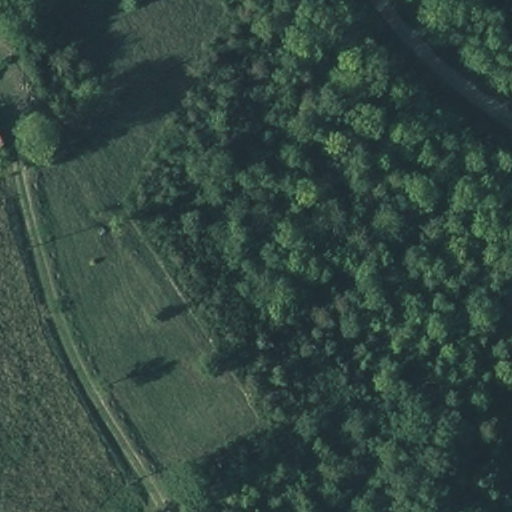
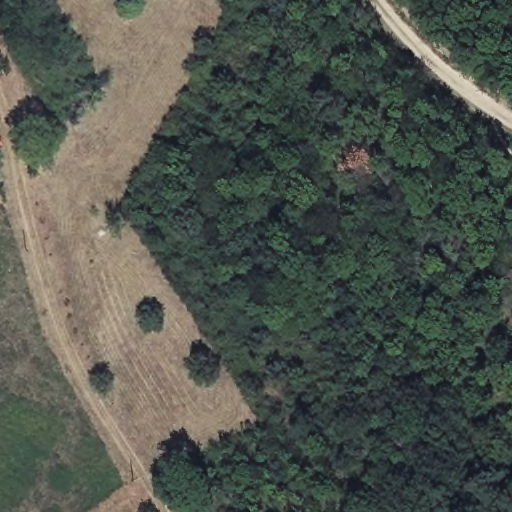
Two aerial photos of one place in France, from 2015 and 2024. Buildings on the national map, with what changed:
unchanged [(0,160),(0,134),(11,155),(0,160)]

